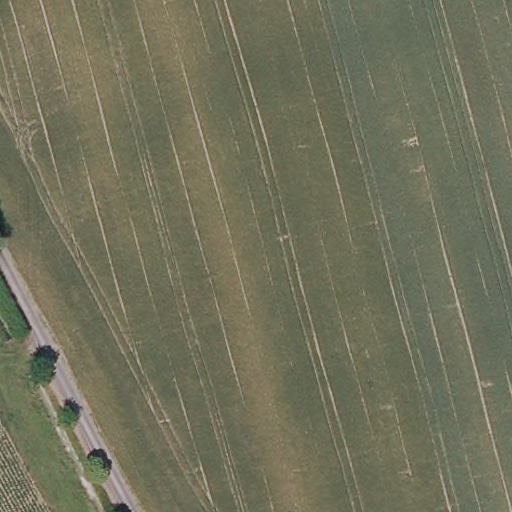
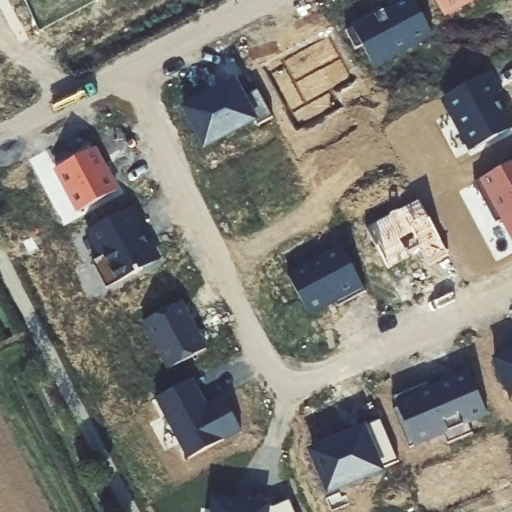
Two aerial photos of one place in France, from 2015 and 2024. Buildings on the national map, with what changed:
new [(432,35),(375,67),(362,46),(355,50),(345,33),(384,13),(382,10),(399,0),(413,0),(432,35)]
new [(443,17),(434,0),(475,0),(443,17)]
new [(499,104),(512,128),(512,129),(473,150),(445,96),(487,75),(501,102),(499,104)]
new [(206,95),(207,97),(235,84),(244,100),(258,92),(272,120),(258,128),(255,122),(206,149),(184,107),(206,95)]
new [(90,152),(101,174),(105,172),(117,194),(79,215),(55,173),(90,152)]
new [(496,226),(474,185),(512,164),(512,240),(502,222),(496,226)]
new [(450,257),(430,268),(420,250),(408,256),(410,259),(387,270),(366,230),(419,201),(450,257)]
new [(130,210),(142,230),(139,232),(157,265),(108,290),(94,262),(103,258),(89,232),(130,210)]
new [(366,292),(338,307),(336,302),(308,317),(287,277),(341,248),(366,292)]
new [(181,305),(206,352),(170,372),(143,325),(181,305)]
new [(512,400),(495,360),(512,353),(512,400)]
new [(427,385),(430,391),(440,387),(439,385),(469,372),(488,416),(469,425),(473,435),(448,445),(445,435),(410,450),(393,411),(398,410),(393,400),(427,385)]
new [(199,395),(195,397),(202,411),(224,399),(243,433),(190,462),(156,400),(192,381),(199,395)]
new [(346,439),(345,436),(381,421),(399,462),(330,492),(313,453),(346,439)]
new [(290,502),(294,512),(215,512),(215,501),(274,509),(290,502)]

